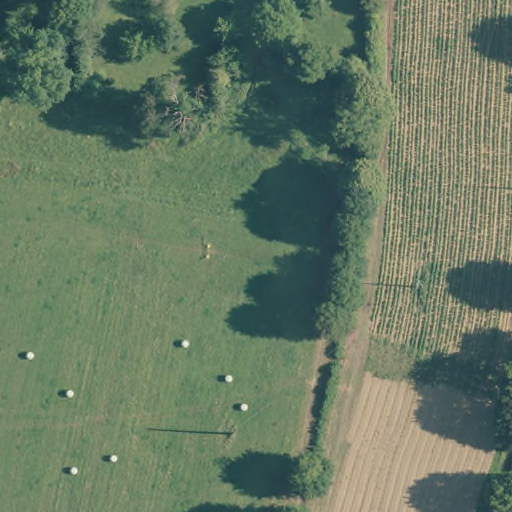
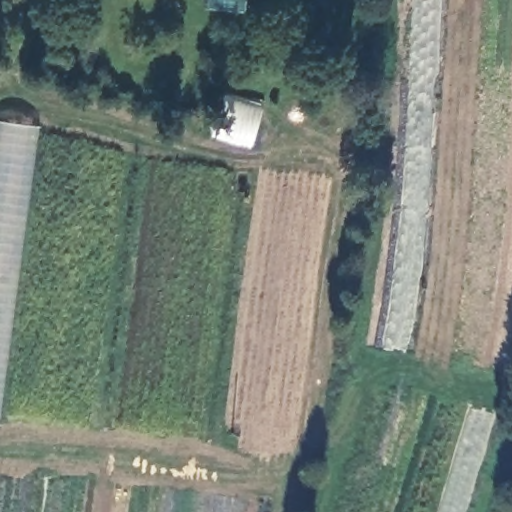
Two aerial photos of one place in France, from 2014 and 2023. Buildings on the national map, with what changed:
new [(0,401),(0,122),(36,126),(0,401)]

